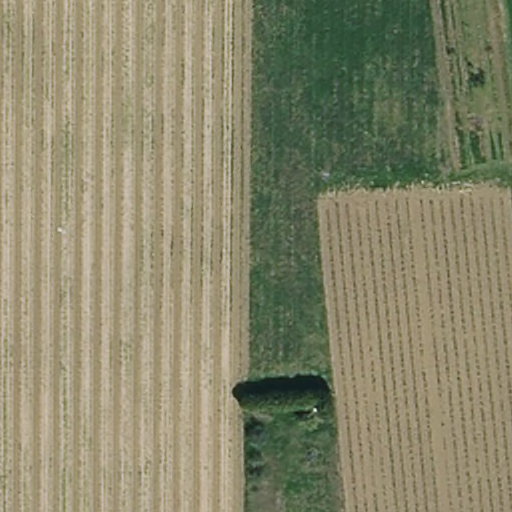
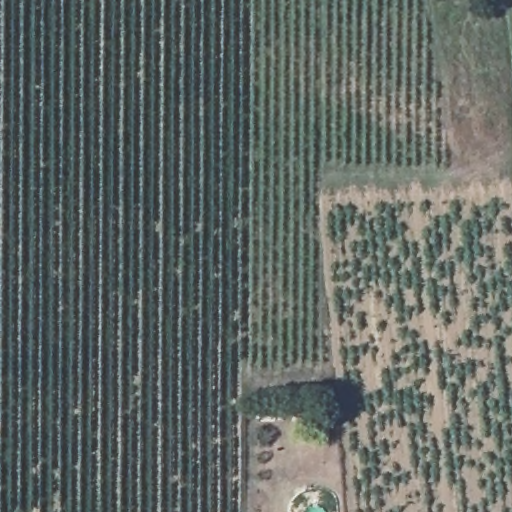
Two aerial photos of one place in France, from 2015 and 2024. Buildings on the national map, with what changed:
[]

